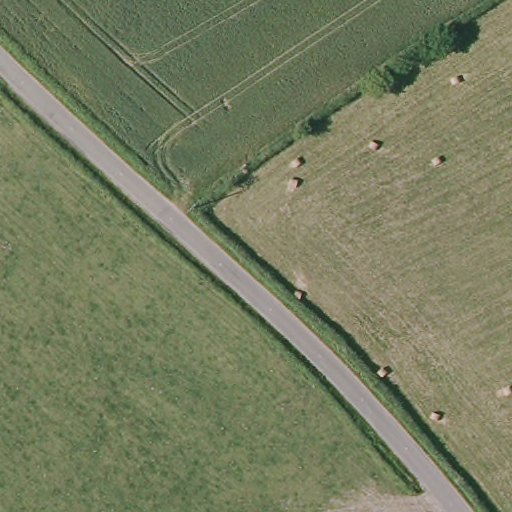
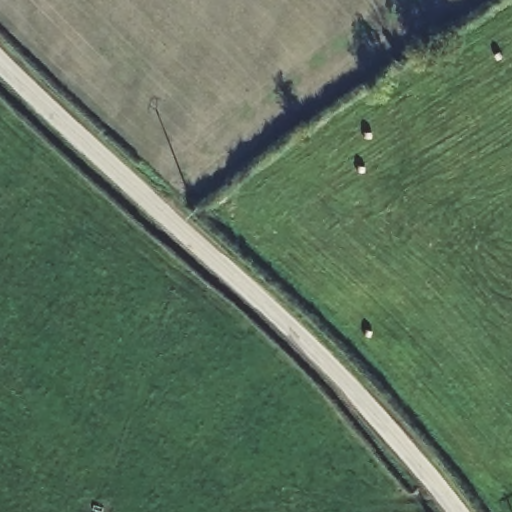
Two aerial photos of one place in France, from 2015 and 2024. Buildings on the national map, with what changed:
[]

